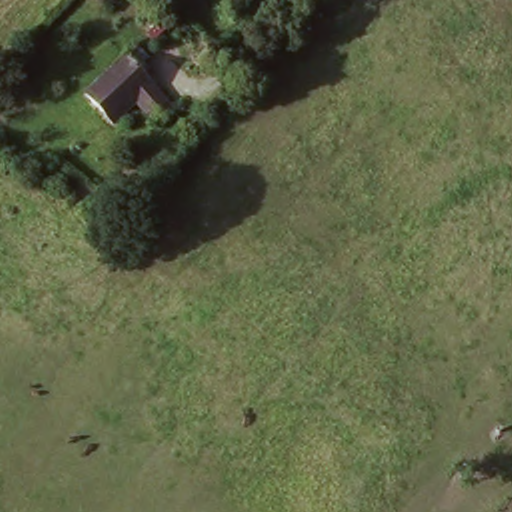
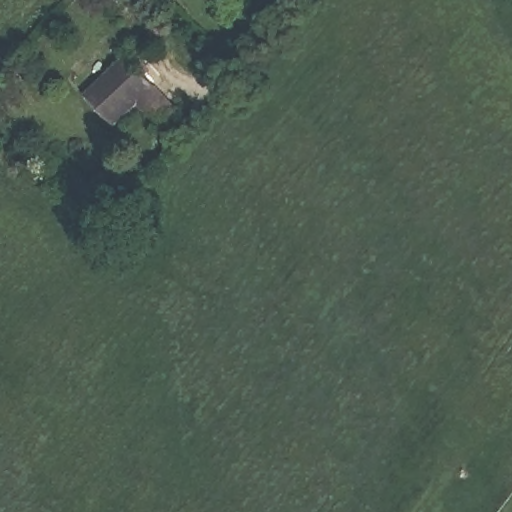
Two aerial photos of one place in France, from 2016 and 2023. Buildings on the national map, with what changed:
unchanged [(146,81),(169,100),(155,117),(132,99),(112,119),(85,97),(120,61),(146,81)]

